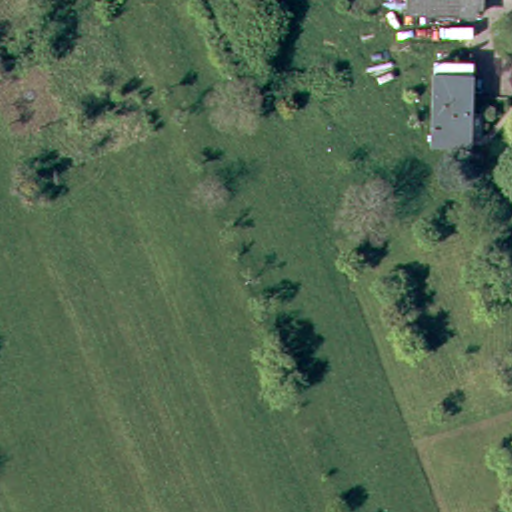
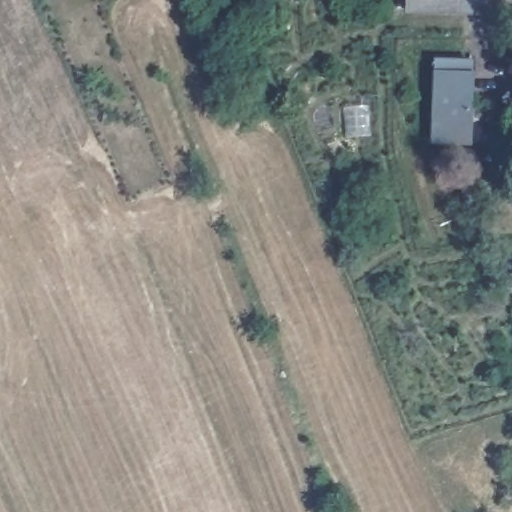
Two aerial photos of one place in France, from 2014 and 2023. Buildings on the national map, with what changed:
unchanged [(477,0),(476,11),(390,4),(390,0),(477,0)]
unchanged [(453,138),(452,145),(427,142),(437,55),(470,60),(462,139),(453,138)]

